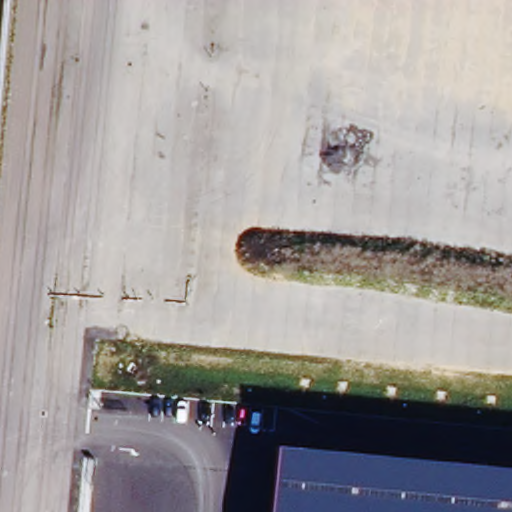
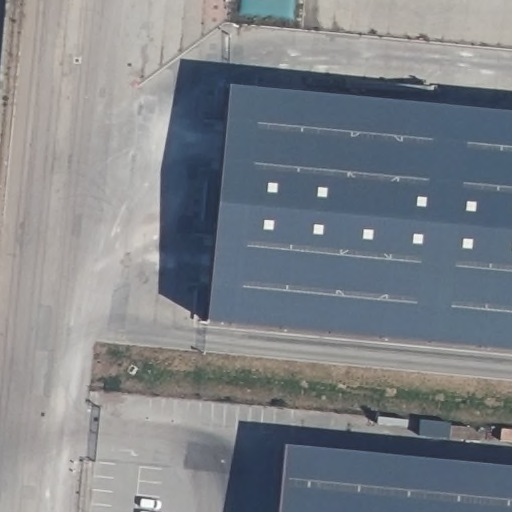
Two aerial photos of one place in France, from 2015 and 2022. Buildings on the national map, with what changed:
new [(228,88),(512,114),(512,345),(208,315),(228,88)]
unchanged [(512,512),(278,512),(284,447),(512,469),(512,512)]

